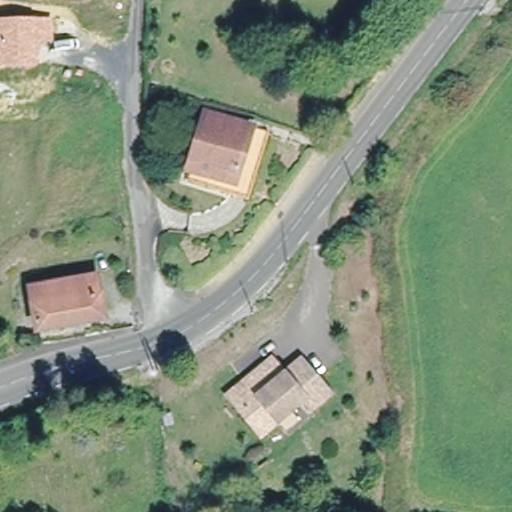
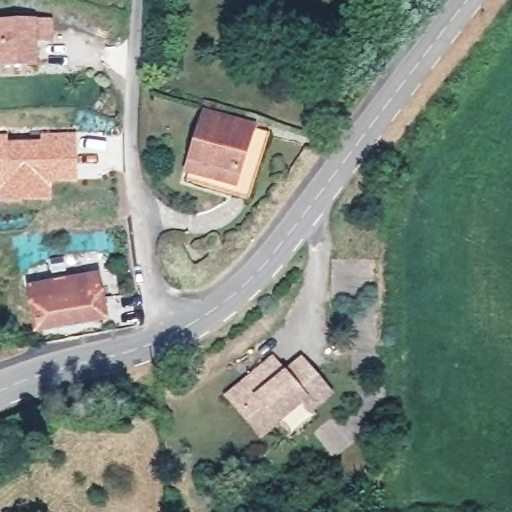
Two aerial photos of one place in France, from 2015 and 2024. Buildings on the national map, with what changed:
unchanged [(53,18),(54,42),(37,42),(37,66),(0,67),(0,19),(36,18),(53,18)]
unchanged [(207,111),(270,129),(251,198),(188,181),(207,111)]
new [(8,140),(40,139),(40,132),(75,131),(76,183),(50,183),(50,202),(0,203),(0,133),(8,133),(8,140)]
unchanged [(118,252),(125,300),(100,304),(93,256),(118,252)]
unchanged [(90,276),(97,319),(31,331),(24,288),(90,276)]
unchanged [(298,346),(306,360),(330,402),(307,415),(300,402),(250,430),(226,384),(275,358),(298,346)]

